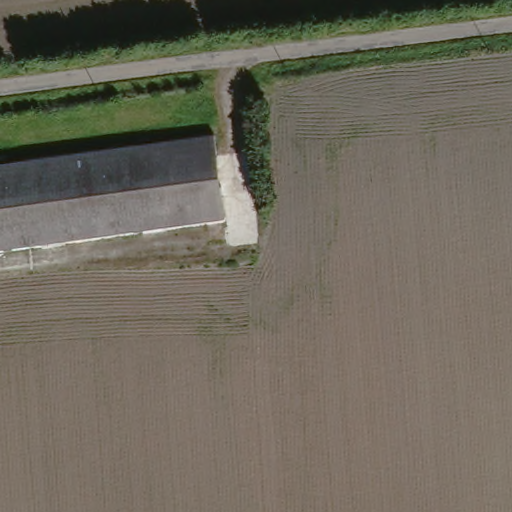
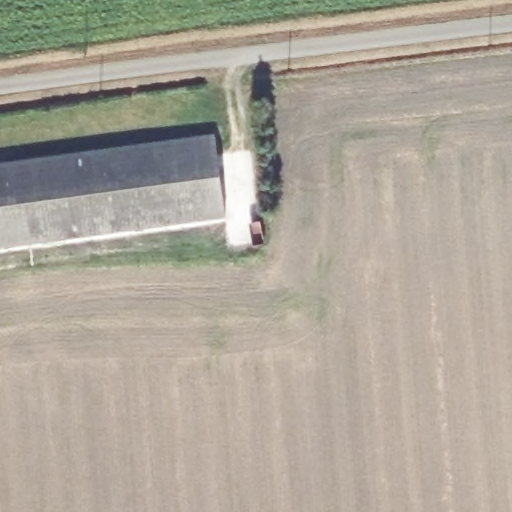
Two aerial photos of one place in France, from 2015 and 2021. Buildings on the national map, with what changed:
unchanged [(221,221),(0,252),(0,168),(210,140),(221,221)]

